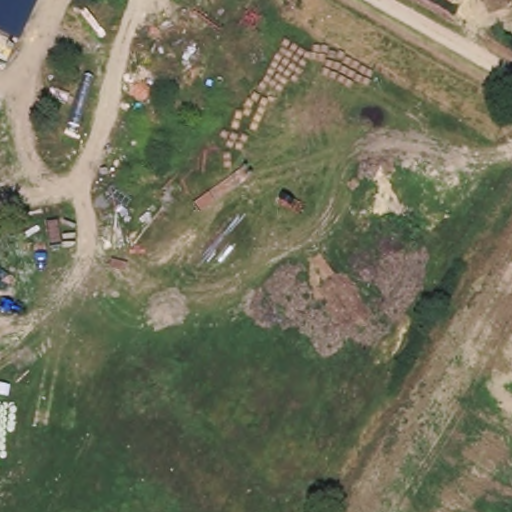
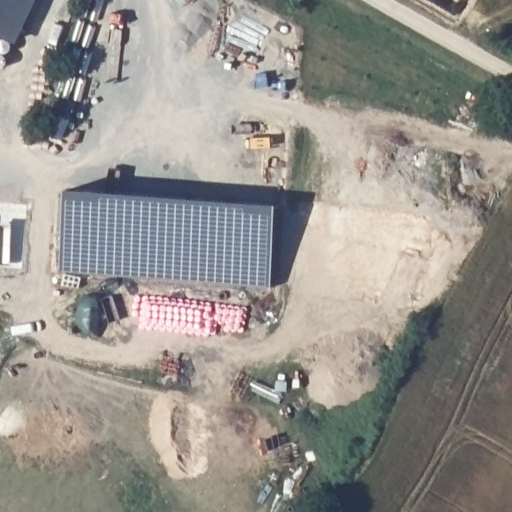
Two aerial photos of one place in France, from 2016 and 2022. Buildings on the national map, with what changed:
unchanged [(0,34),(0,0),(37,0),(18,41),(0,34)]
new [(68,190),(278,205),(272,287),(62,271),(68,190)]

